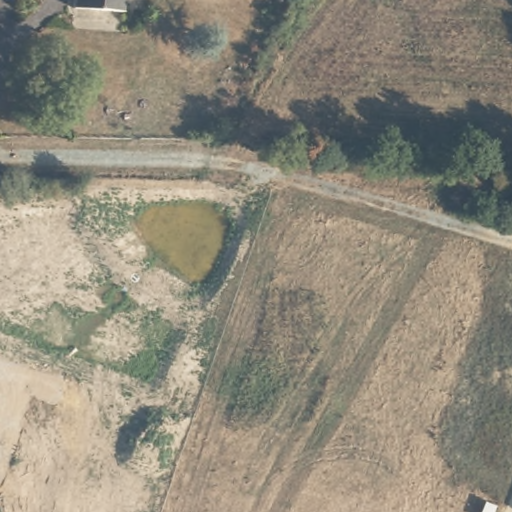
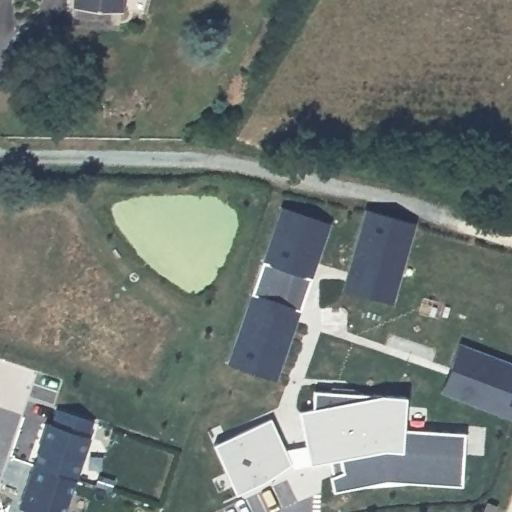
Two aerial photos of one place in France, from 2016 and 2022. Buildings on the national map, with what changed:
unchanged [(80,0),(127,0),(127,13),(80,11),(80,0)]
new [(331,224),(312,278),(301,311),(277,381),(228,364),(282,207),(331,224)]
new [(366,209),(416,223),(393,304),(368,297),(343,289),(348,272),(366,209)]
new [(512,363),(512,419),(457,398),(440,391),(450,367),(458,343),(512,363)]
new [(300,412),(313,409),(314,391),(406,397),(404,429),(465,432),(462,486),(387,481),(334,492),(331,476),(333,476),(330,462),(311,465),(295,468),(266,482),(237,495),(214,445),(271,419),(286,450),(307,446),(300,412)]
new [(32,465),(40,438),(37,438),(44,420),(49,422),(54,406),(89,418),(84,433),(86,434),(72,476),(32,465)]
unchanged [(72,476),(77,478),(65,512),(32,512),(19,507),(32,465),(72,476)]

